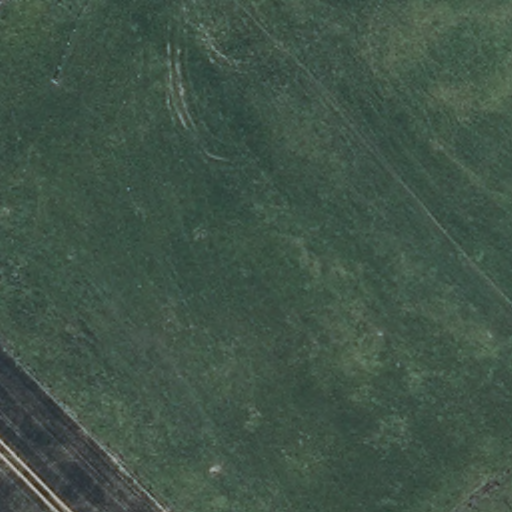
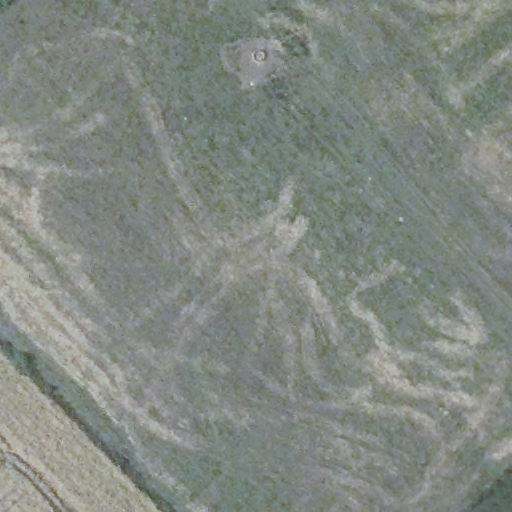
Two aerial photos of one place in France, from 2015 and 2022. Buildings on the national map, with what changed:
[]

